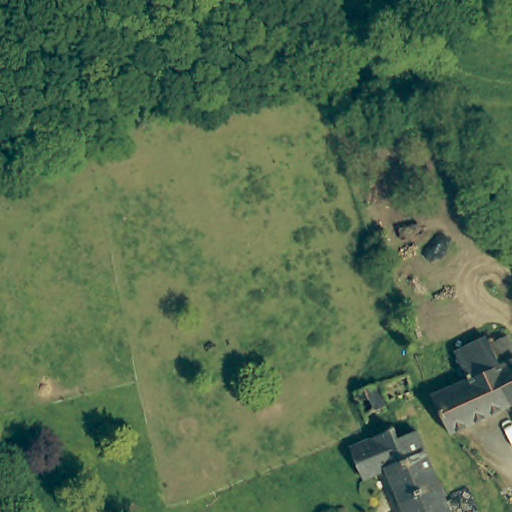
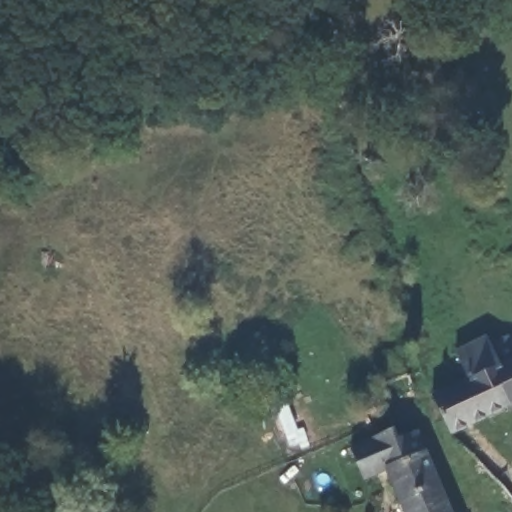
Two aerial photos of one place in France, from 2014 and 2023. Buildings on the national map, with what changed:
unchanged [(431,395),(468,378),(456,352),(487,337),(490,342),(509,336),(512,342),(512,405),(450,433),(431,395)]
unchanged [(409,398),(382,405),(374,387),(401,377),(409,398)]
unchanged [(453,512),(404,512),(386,471),(365,479),(351,447),(372,437),(393,427),(397,436),(417,427),(453,512)]

